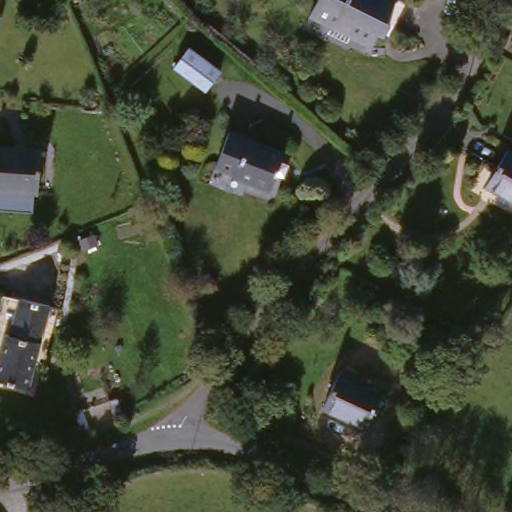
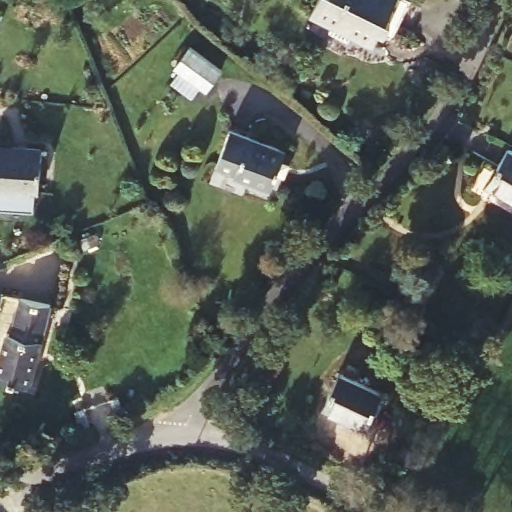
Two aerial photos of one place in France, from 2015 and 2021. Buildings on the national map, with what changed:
unchanged [(376,23),(380,25),(375,37),(370,35),(363,49),(341,38),(338,44),(319,34),(322,28),(300,17),(309,0),(387,0),(376,23)]
unchanged [(214,82),(198,100),(171,75),(187,57),(214,82)]
unchanged [(284,154),(271,191),(234,177),(235,174),(216,167),(229,132),(284,154)]
unchanged [(33,183),(29,183),(28,203),(0,201),(0,138),(36,140),(33,183)]
unchanged [(512,163),(512,209),(483,193),(503,158),(512,163)]
unchanged [(24,393),(0,387),(0,342),(1,339),(6,340),(16,304),(45,311),(24,393)]
unchanged [(330,379),(371,398),(355,431),(315,413),(330,379)]

